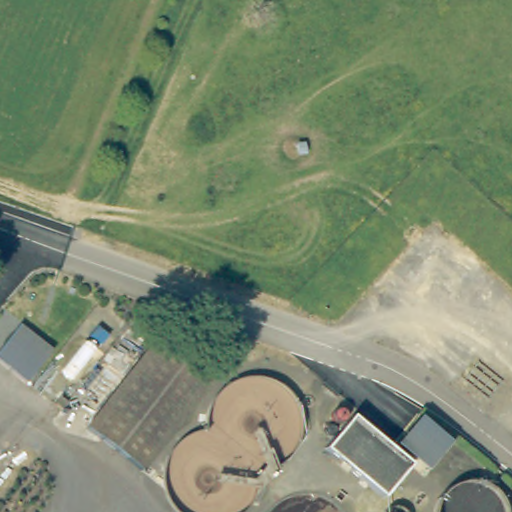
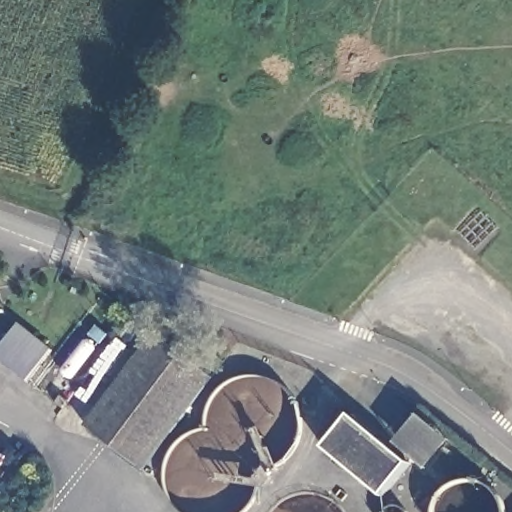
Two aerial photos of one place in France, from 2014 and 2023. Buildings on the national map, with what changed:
unchanged [(52,351),(27,382),(0,360),(0,348),(19,324),(52,351)]
unchanged [(158,331),(213,373),(142,466),(87,422),(158,331)]
unchanged [(319,443),(346,411),(405,460),(378,492),(319,443)]
unchanged [(392,440),(416,411),(445,435),(421,464),(392,440)]
unchanged [(340,490),(347,495),(341,502),(335,496),(340,490)]

